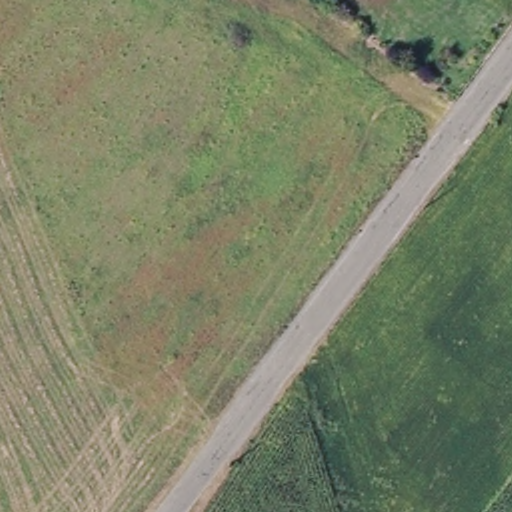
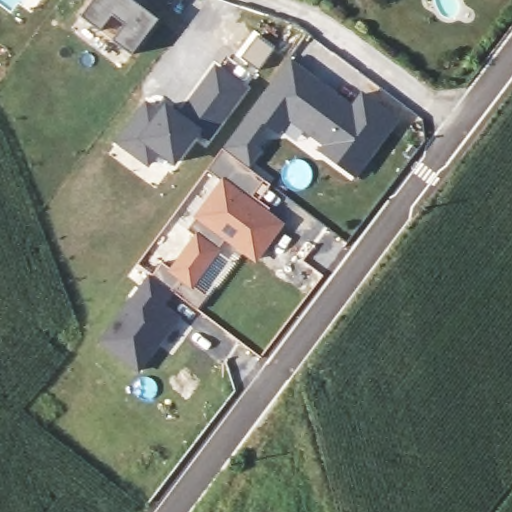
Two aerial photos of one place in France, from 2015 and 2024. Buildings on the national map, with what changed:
new [(102,0),(113,0),(157,34),(130,70),(111,55),(123,39),(111,30),(99,46),(79,31),(102,0)]
new [(257,34),(275,48),(260,69),(240,56),(257,34)]
new [(215,63),(250,87),(210,142),(200,135),(204,129),(180,111),(215,63)]
new [(180,292),(171,286),(195,251),(186,245),(221,196),(205,185),(221,163),(233,147),(249,126),(286,75),(314,95),(350,122),(360,108),(395,133),(353,190),(334,176),(319,165),(323,159),(287,132),(276,146),(272,143),(257,165),(245,181),(262,194),(251,209),(268,222),(265,227),(280,238),(255,274),(225,252),(215,266),(190,300),(206,311),(196,324),(170,305),(160,319),(177,331),(137,385),(99,355),(149,289),(170,305),(180,292)]
new [(146,98),(160,105),(165,100),(180,111),(204,129),(200,135),(175,166),(159,155),(149,167),(112,141),(146,98)]

